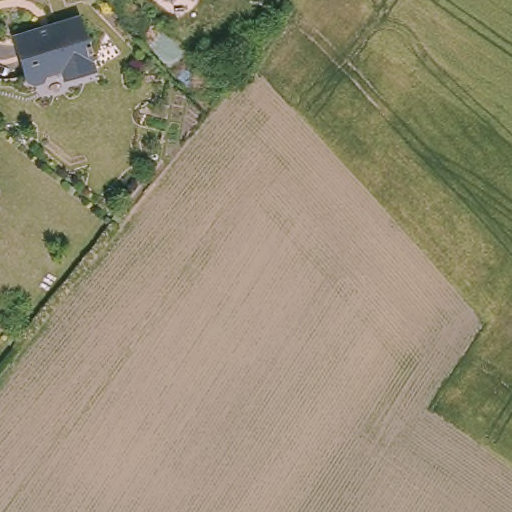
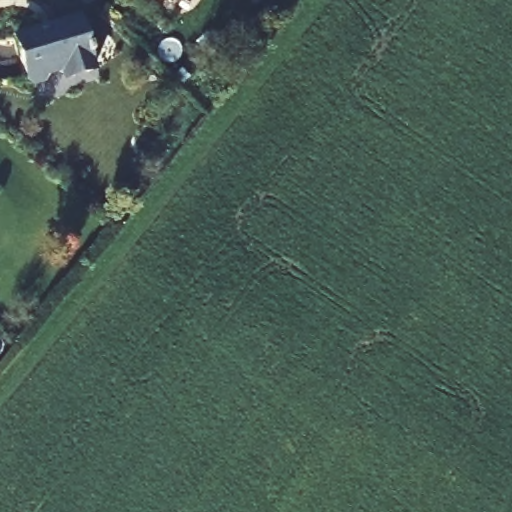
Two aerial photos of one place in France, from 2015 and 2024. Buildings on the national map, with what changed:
unchanged [(80,16),(87,45),(90,44),(92,51),(90,52),(95,68),(67,76),(65,66),(47,71),(44,78),(36,80),(30,77),(17,35),(80,16)]

